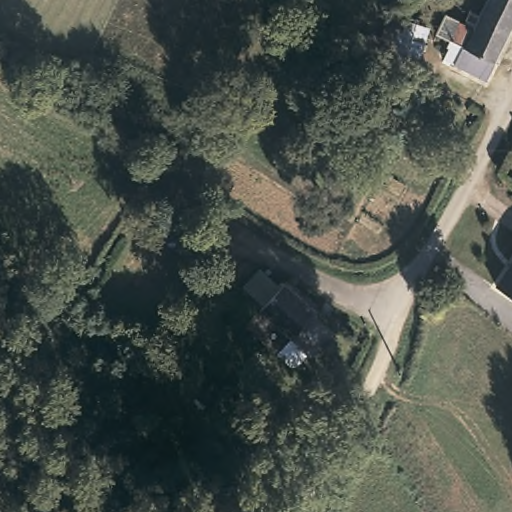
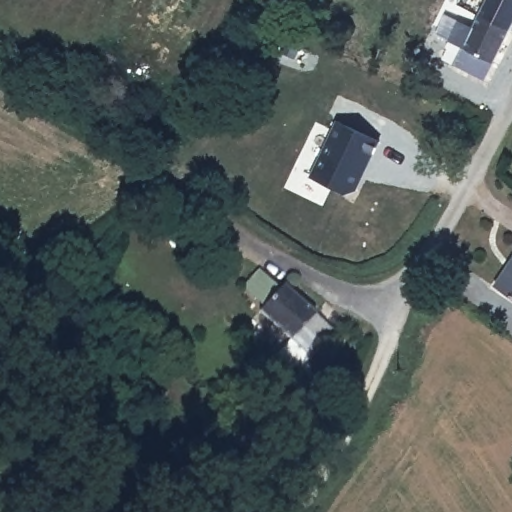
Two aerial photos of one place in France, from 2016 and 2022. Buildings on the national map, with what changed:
unchanged [(486,0),(512,0),(512,25),(511,26),(480,11),(486,0)]
unchanged [(484,81),(443,59),(449,44),(445,42),(448,36),(435,30),(445,9),(475,22),(480,11),(511,26),(484,81)]
demolished [(323,100),(368,116),(352,150),(309,136),(323,100)]
new [(359,191),(344,193),(312,178),(339,121),(381,141),(359,191)]
unchanged [(512,252),(512,298),(492,287),(512,252)]
unchanged [(313,352),(310,350),(300,363),(294,363),(282,353),(294,337),(261,310),(264,306),(244,288),(259,271),(279,289),(283,285),(316,311),(335,326),(313,352)]

